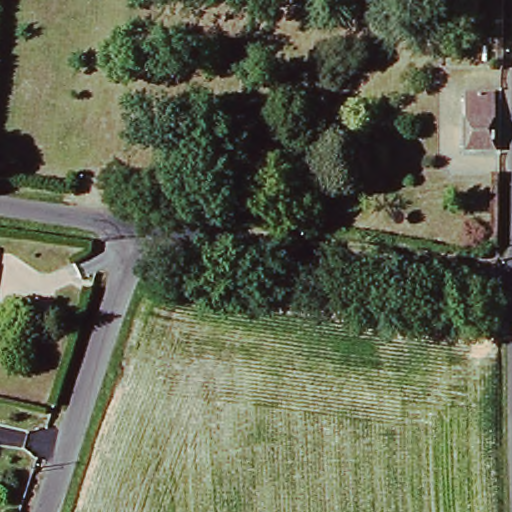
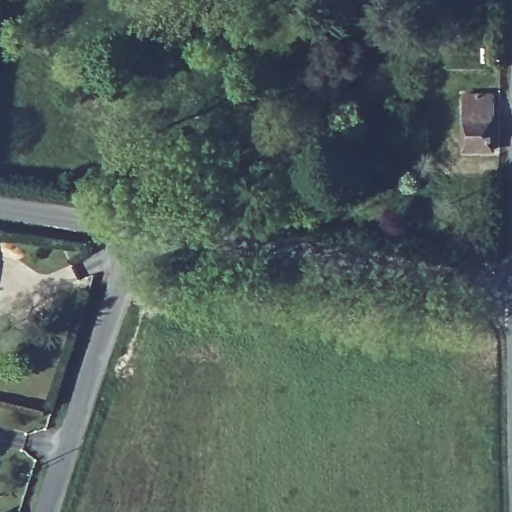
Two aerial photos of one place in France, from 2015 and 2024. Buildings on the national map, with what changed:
unchanged [(493,101),(493,143),(465,143),(464,101),(493,101)]

